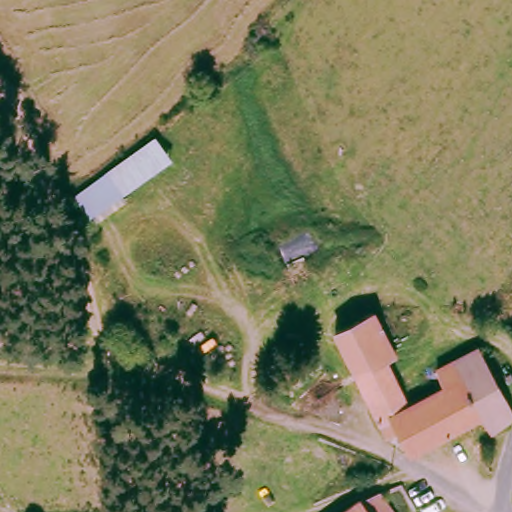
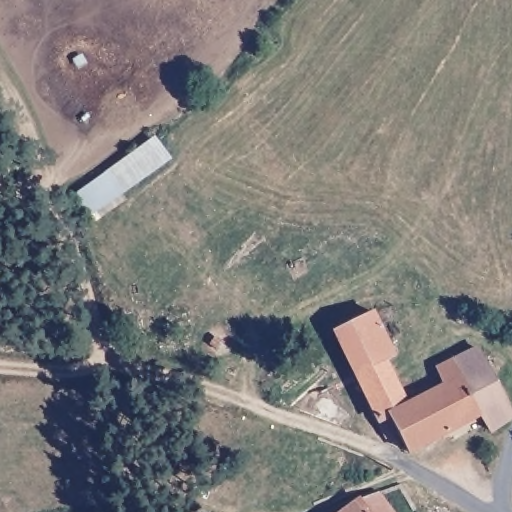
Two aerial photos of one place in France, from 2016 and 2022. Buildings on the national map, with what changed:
unchanged [(158,134),(175,159),(126,194),(131,201),(93,225),(76,202),(158,134)]
unchanged [(397,352),(389,357),(359,371),(337,328),(376,309),(397,352)]
unchanged [(497,428),(484,409),(410,449),(392,414),(384,420),(359,371),(389,357),(411,401),(443,385),(438,368),(476,349),(512,400),(512,416),(497,428)]
unchanged [(366,496),(382,488),(399,512),(340,512),(366,496)]

